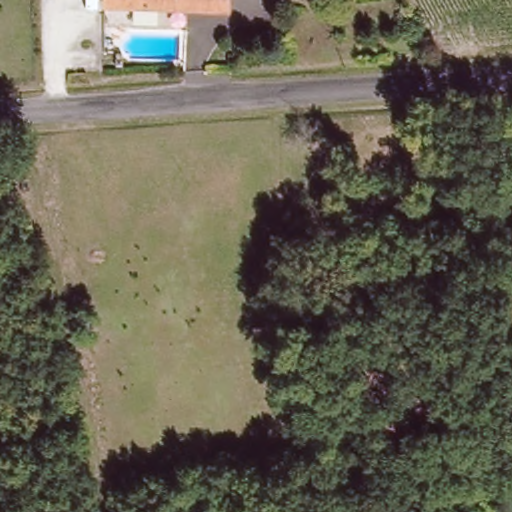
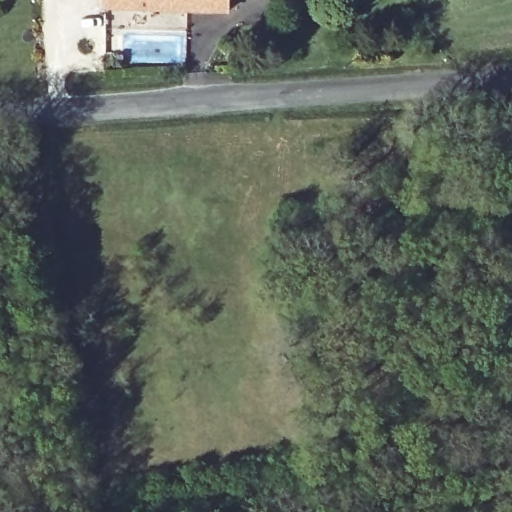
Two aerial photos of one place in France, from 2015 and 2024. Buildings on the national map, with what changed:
unchanged [(101,6),(101,0),(222,0),(222,10),(101,6)]

